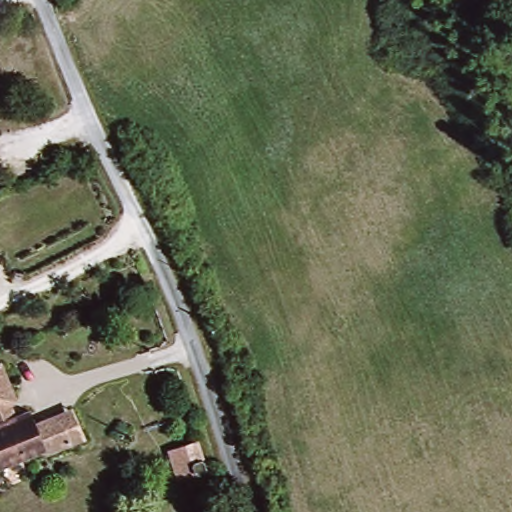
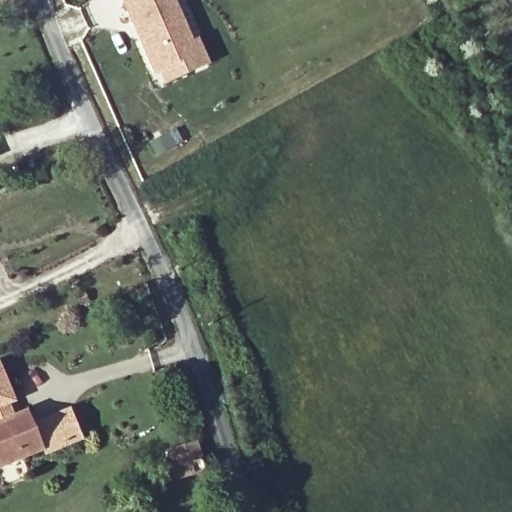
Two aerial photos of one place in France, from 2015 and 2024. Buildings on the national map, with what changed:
new [(210,65),(168,83),(162,71),(156,74),(124,0),(176,0),(194,42),(199,39),(210,65)]
unchanged [(0,151),(0,149),(1,151),(0,151)]
unchanged [(68,443),(45,453),(42,447),(0,465),(0,373),(11,401),(7,403),(14,425),(31,418),(36,430),(58,420),(69,415),(79,437),(68,443)]
unchanged [(181,489),(168,457),(180,453),(192,447),(199,465),(205,480),(181,489)]

